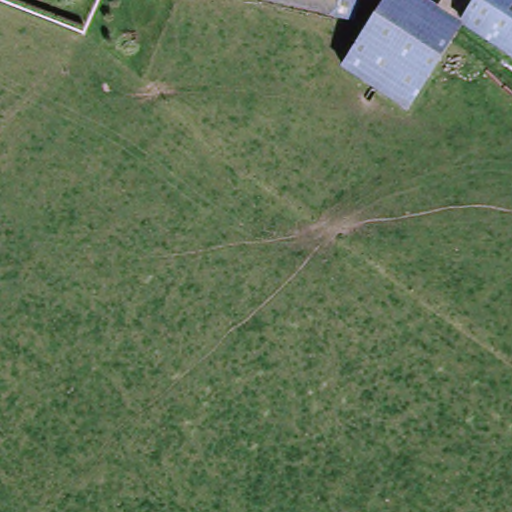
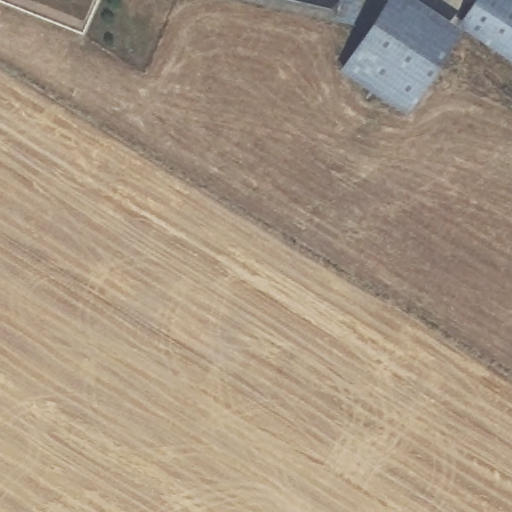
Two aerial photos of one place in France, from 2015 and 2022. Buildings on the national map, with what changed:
unchanged [(268,0),(361,0),(359,16),(268,0)]
unchanged [(377,0),(431,0),(456,13),(465,0),(512,0),(512,57),(459,22),(405,105),(337,68),(360,30),(377,0)]

